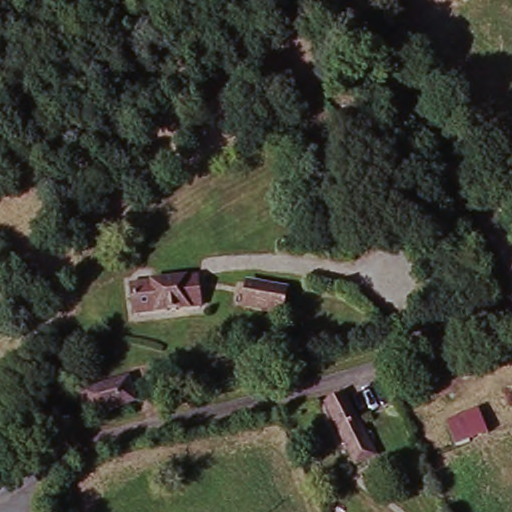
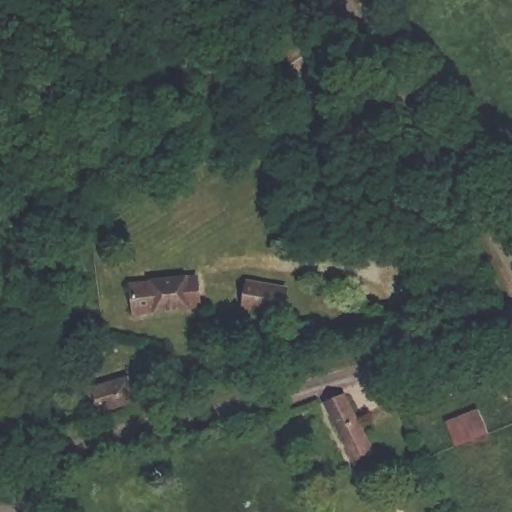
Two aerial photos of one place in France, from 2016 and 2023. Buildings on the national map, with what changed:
unchanged [(134,283),(186,281),(200,280),(200,306),(189,307),(135,312),(134,283)]
unchanged [(286,288),(281,312),(244,308),(245,284),(286,288)]
unchanged [(82,396),(94,393),(129,384),(135,407),(99,415),(87,418),(82,396)]
unchanged [(342,400),(385,460),(363,472),(323,410),(342,400)]
unchanged [(477,417),(485,435),(456,447),(448,429),(477,417)]

